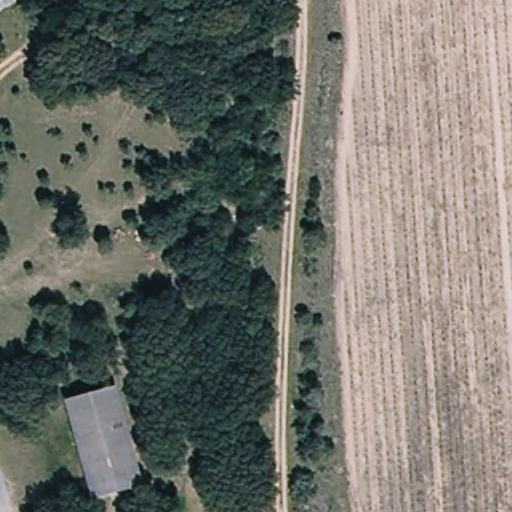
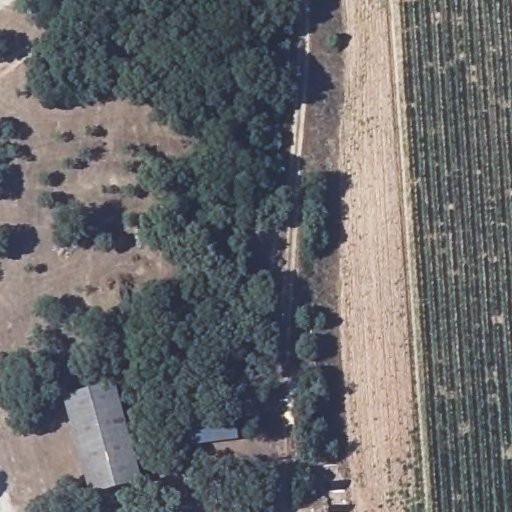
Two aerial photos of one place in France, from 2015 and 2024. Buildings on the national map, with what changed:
unchanged [(113,389),(140,485),(90,498),(63,402),(113,389)]

